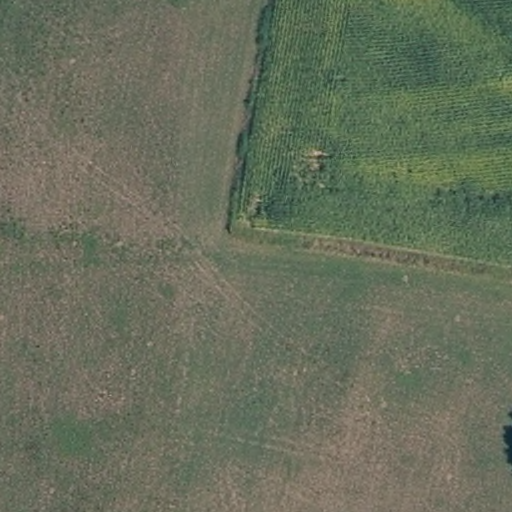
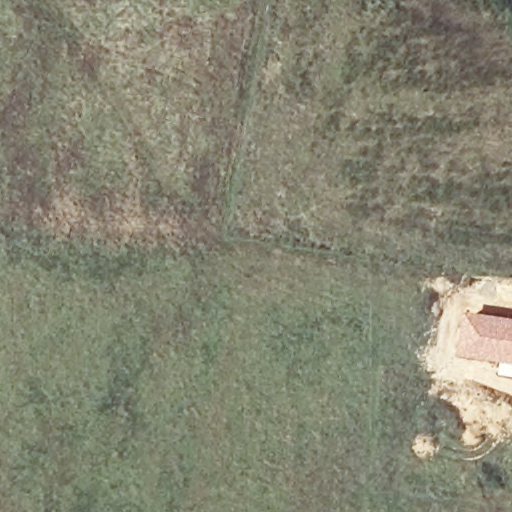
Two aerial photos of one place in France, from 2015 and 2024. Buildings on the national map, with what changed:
new [(468,311),(512,318),(512,377),(509,376),(510,369),(501,364),(460,356),(468,311)]

